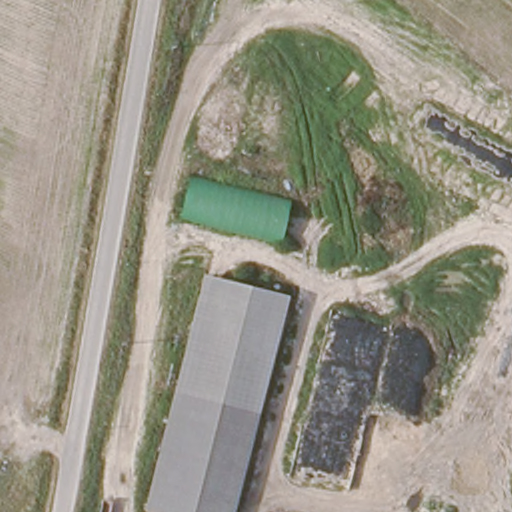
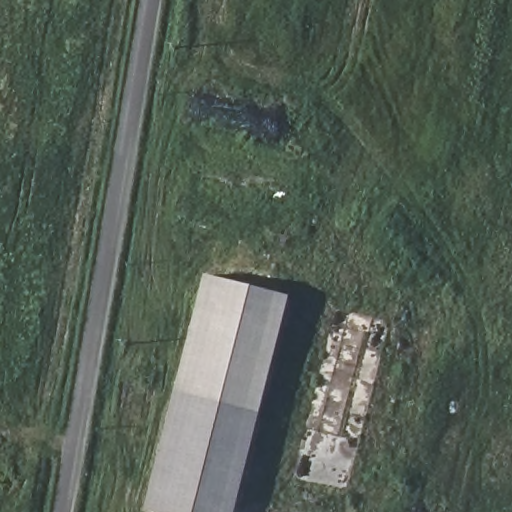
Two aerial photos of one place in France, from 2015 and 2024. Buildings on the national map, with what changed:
demolished [(282,248),(182,225),(191,180),(292,204),(282,248)]
unchanged [(173,387),(204,275),(290,295),(263,411),(173,387)]
unchanged [(263,411),(237,512),(158,512),(149,509),(173,387),(263,411)]

